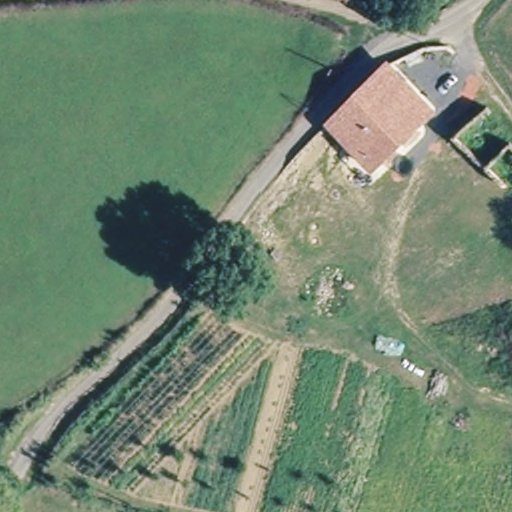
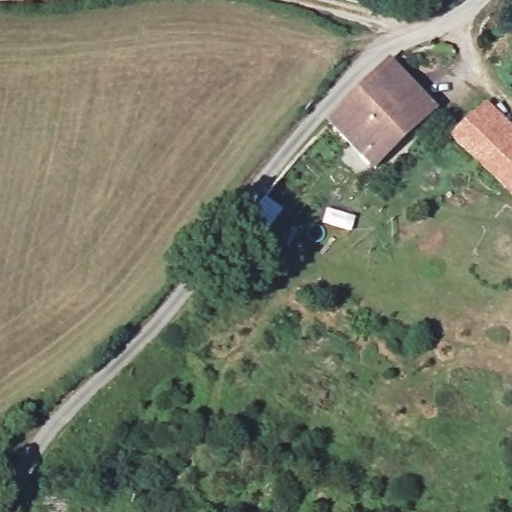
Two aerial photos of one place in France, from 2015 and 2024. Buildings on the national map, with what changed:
unchanged [(328,125),(389,69),(428,110),(369,168),(328,125)]
new [(448,136),(485,100),(512,126),(512,198),(448,136)]

